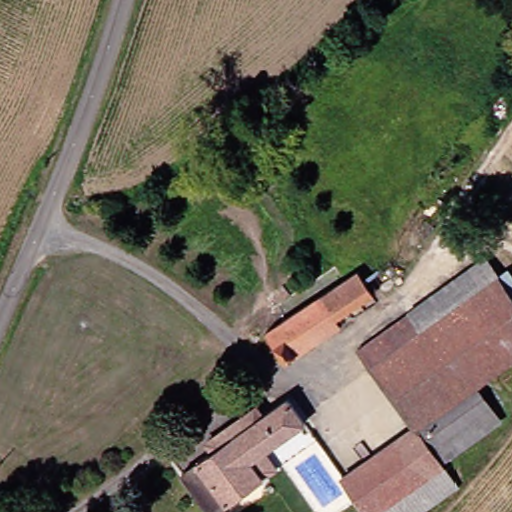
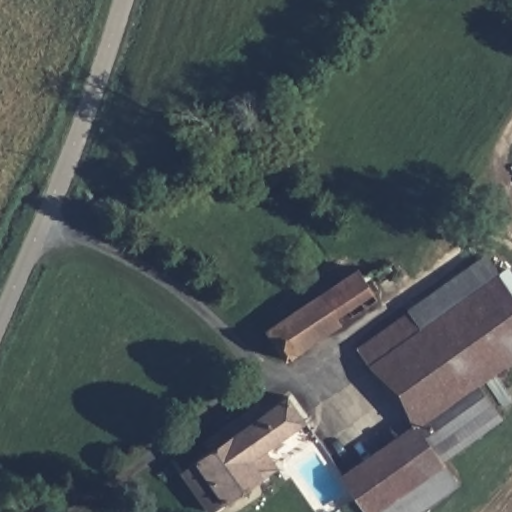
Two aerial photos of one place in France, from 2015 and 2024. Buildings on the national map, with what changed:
unchanged [(487,388),(508,414),(449,456),(457,467),(472,484),(432,512),(376,512),(352,476),(427,425),(382,364),(367,348),(416,311),(497,254),(508,273),(512,270),(512,371),(487,388)]
unchanged [(395,290),(358,313),(363,320),(307,357),(285,325),(378,265),(395,290)]
unchanged [(275,453),(285,469),(224,512),(219,512),(193,476),(222,455),(216,447),(265,412),(270,419),(293,402),(312,427),(275,453)]

